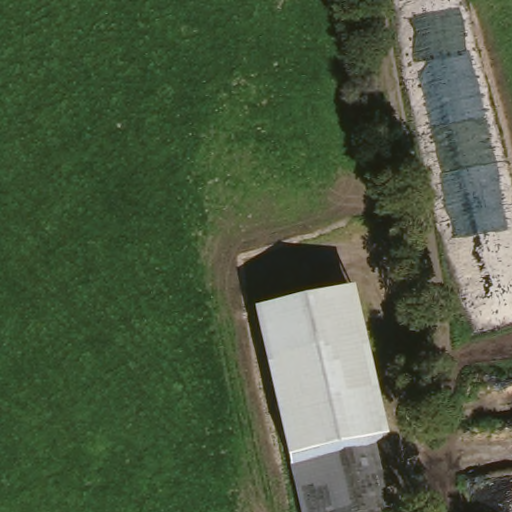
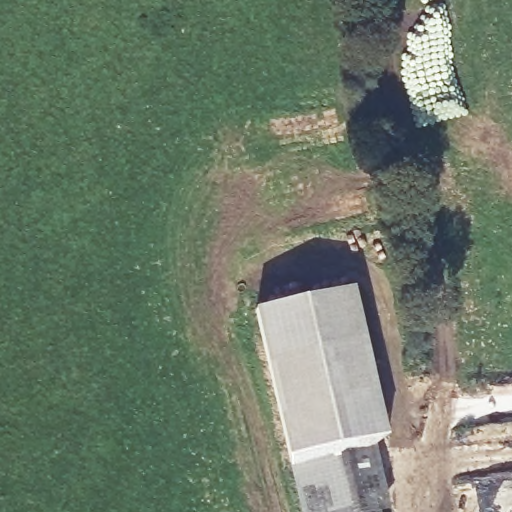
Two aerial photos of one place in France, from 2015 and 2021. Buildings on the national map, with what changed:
unchanged [(256,310),(355,287),(387,437),(368,447),(303,459),(293,461),(256,310)]
unchanged [(293,461),(368,447),(379,512),(300,512),(293,469),(293,461)]

